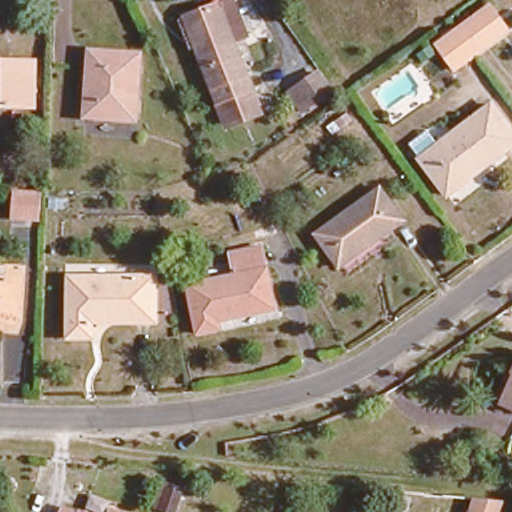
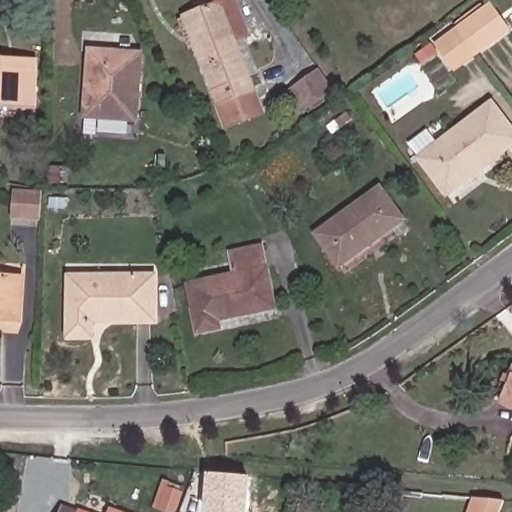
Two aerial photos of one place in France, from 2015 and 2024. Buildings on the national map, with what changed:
unchanged [(231,0),(243,33),(233,36),(260,107),(225,120),(184,11),(216,1),(215,0),(231,0)]
unchanged [(441,40),(457,27),(490,3),(507,27),(474,50),(457,61),(441,40)]
unchanged [(134,50),(130,114),(79,111),(85,45),(134,50)]
unchanged [(0,57),(1,57),(35,56),(34,68),(34,104),(0,103),(0,57)]
unchanged [(285,87),(290,84),(313,69),(330,94),(308,110),(305,105),(300,109),(285,87)]
unchanged [(512,122),(512,142),(451,185),(422,146),(412,131),(431,118),(442,133),(494,96),(512,122)]
unchanged [(313,229),(375,185),(401,219),(337,264),(313,229)]
unchanged [(44,192),(42,224),(12,222),(15,190),(44,192)]
unchanged [(256,240),(273,304),(220,317),(222,330),(199,335),(187,282),(231,270),(225,249),(256,240)]
unchanged [(16,317),(0,316),(0,275),(20,276),(16,317)]
unchanged [(69,276),(152,278),(152,325),(93,325),(94,343),(67,343),(69,276)]
unchanged [(497,398),(504,383),(512,363),(512,405),(497,398)]
new [(250,477),(248,512),(205,512),(207,473),(250,477)]
unchanged [(163,492),(177,498),(171,512),(155,512),(163,492)]
unchanged [(473,502),(502,505),(499,512),(470,512),(473,502)]
unchanged [(75,510),(81,512),(74,512),(75,510)]

